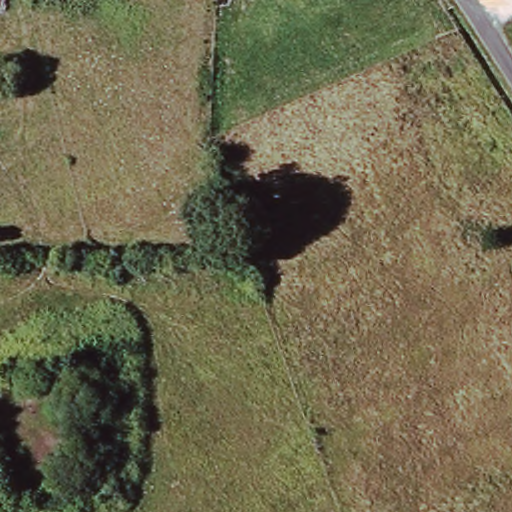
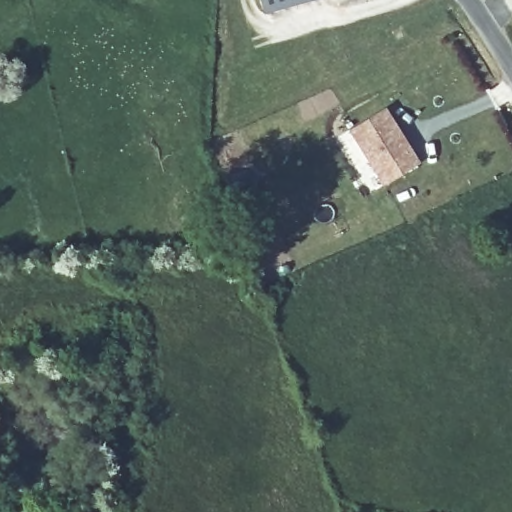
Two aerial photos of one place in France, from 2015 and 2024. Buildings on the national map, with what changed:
new [(257,0),(315,0),(261,15),(257,0)]
new [(382,185),(349,131),(386,109),(418,163),(382,185)]

